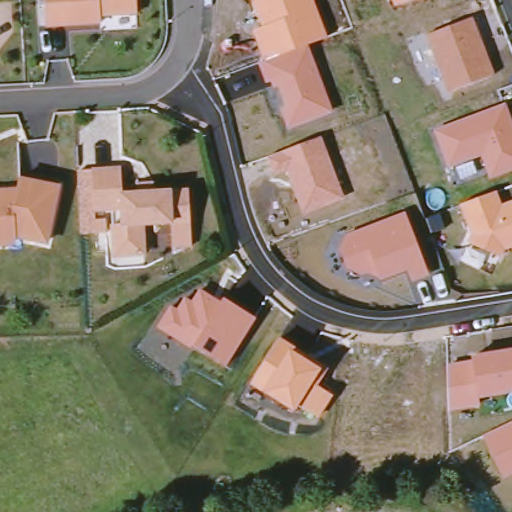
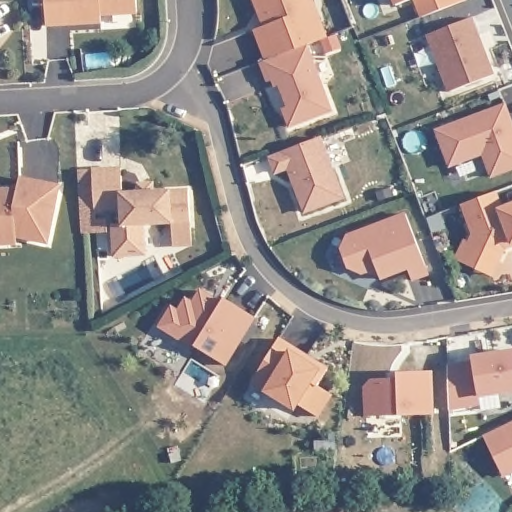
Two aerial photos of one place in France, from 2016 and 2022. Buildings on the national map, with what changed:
unchanged [(138,17),(101,20),(102,27),(47,31),(45,0),(136,0),(138,17)]
unchanged [(327,40),(307,47),(333,112),(288,127),(281,109),(287,106),(278,86),(273,87),(271,82),(265,84),(259,63),(263,62),(252,30),(262,26),(252,0),(313,0),(327,40)]
unchanged [(397,7),(394,0),(416,0),(397,7)]
new [(421,17),(415,1),(416,0),(464,0),(421,17)]
unchanged [(473,20),(495,75),(451,92),(429,36),(473,20)]
unchanged [(506,104),(512,121),(512,171),(492,179),(482,157),(450,167),(436,129),(506,104)]
unchanged [(322,139),(345,199),(303,212),(286,169),(273,174),(267,159),(322,139)]
unchanged [(121,197),(138,196),(138,187),(151,187),(152,195),(187,193),(188,225),(141,227),(143,257),(112,258),(111,227),(122,227),(121,212),(93,213),(91,173),(120,171),(121,197)]
unchanged [(0,197),(1,209),(16,208),(20,204),(24,184),(63,192),(51,247),(19,239),(20,247),(0,247),(0,197)]
unchanged [(498,191),(504,206),(512,203),(512,247),(506,250),(502,260),(467,245),(471,235),(461,205),(498,191)]
unchanged [(406,213),(429,276),(413,281),(409,270),(380,281),(369,273),(359,277),(348,270),(339,249),(345,235),(406,213)]
unchanged [(175,312),(186,297),(192,302),(203,289),(223,303),(226,297),(255,319),(225,367),(156,327),(168,307),(175,312)]
unchanged [(297,348),(294,353),(325,372),(317,385),(335,397),(320,419),(301,407),(296,413),(249,383),(278,337),(297,348)]
unchanged [(472,363),(471,355),(512,349),(512,391),(478,397),(479,407),(448,412),(447,367),(472,363)]
new [(399,415),(365,416),(363,388),(371,380),(398,380),(398,373),(432,371),(434,412),(399,415)]
unchanged [(512,421),(512,472),(503,476),(483,435),(512,421)]

